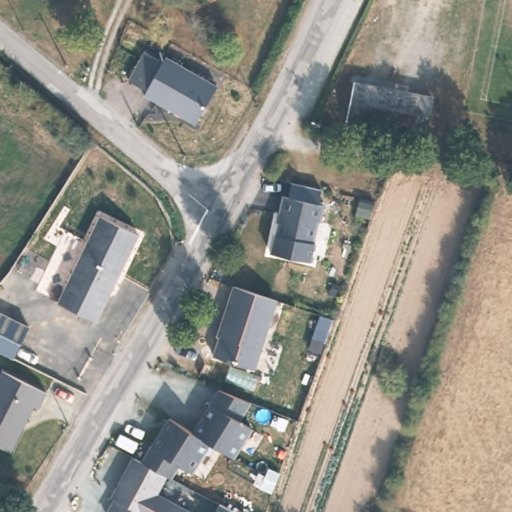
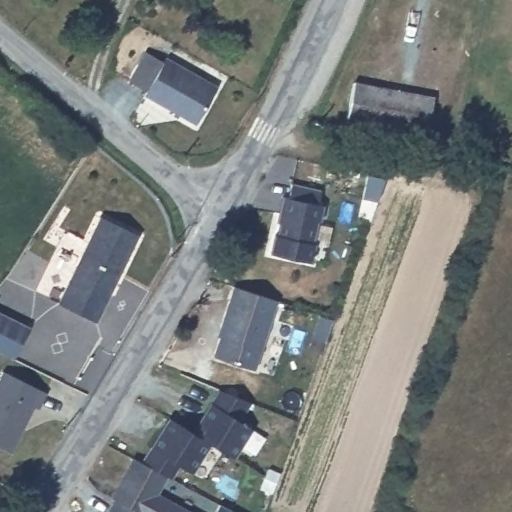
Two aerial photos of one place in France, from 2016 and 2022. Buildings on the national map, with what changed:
unchanged [(200,123),(161,105),(147,97),(166,58),(185,67),(219,84),(200,123)]
unchanged [(353,80),(431,95),(422,137),(343,121),(353,80)]
unchanged [(318,207),(323,207),(318,225),(317,225),(312,247),(276,240),(281,217),(280,215),(283,199),(288,200),(292,185),(321,191),(318,207)]
unchanged [(104,218),(142,238),(117,285),(111,287),(107,295),(111,297),(98,323),(60,303),(104,218)]
unchanged [(256,371),(214,357),(222,328),(220,327),(232,285),(277,298),(256,371)]
unchanged [(0,351),(0,312),(30,327),(14,358),(0,351)]
unchanged [(10,451),(0,446),(0,375),(2,371),(45,392),(37,407),(34,406),(10,451)]
unchanged [(233,458),(210,443),(193,436),(217,392),(249,405),(241,422),(252,429),(233,458)]
unchanged [(171,479),(166,477),(141,464),(167,421),(193,436),(210,443),(191,473),(180,466),(171,479)]
unchanged [(111,497),(134,460),(141,464),(166,477),(159,494),(194,512),(109,512),(117,498),(111,497)]
unchanged [(234,512),(213,512),(219,503),(234,512)]

